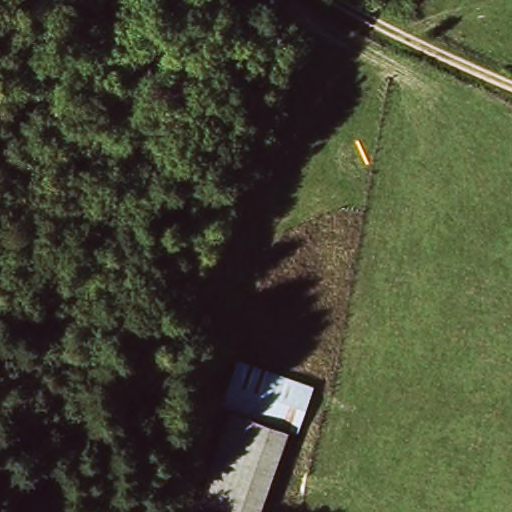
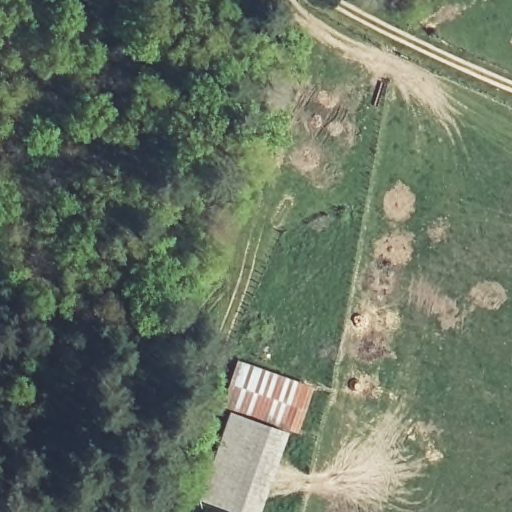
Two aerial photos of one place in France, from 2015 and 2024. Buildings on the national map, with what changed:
unchanged [(200,499),(231,409),(222,406),(239,357),(312,383),(299,431),(290,429),(262,512),(238,512),(200,499)]

